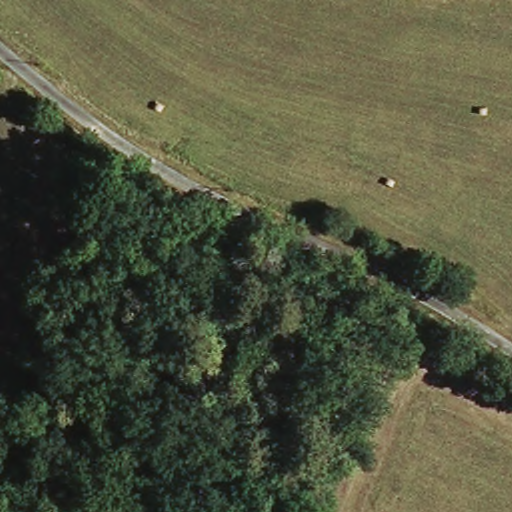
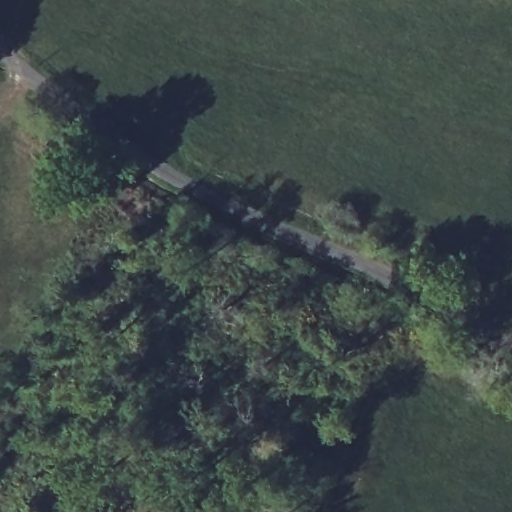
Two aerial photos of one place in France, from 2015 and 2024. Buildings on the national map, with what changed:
[]

